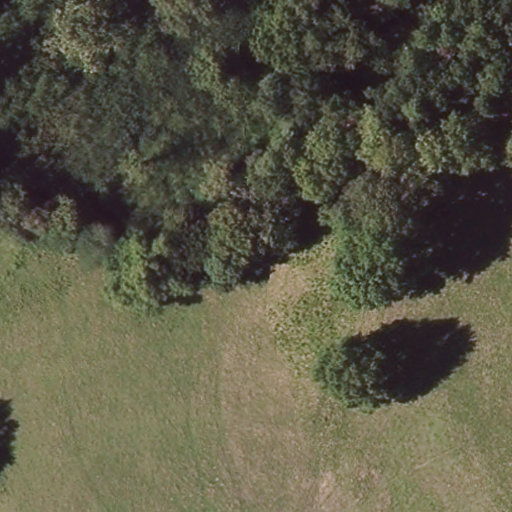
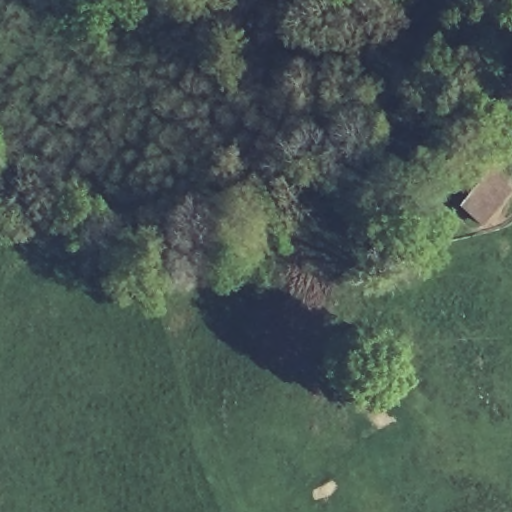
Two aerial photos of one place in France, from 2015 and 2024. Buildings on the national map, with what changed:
new [(487,172),(511,191),(482,229),(458,208),(487,172)]

